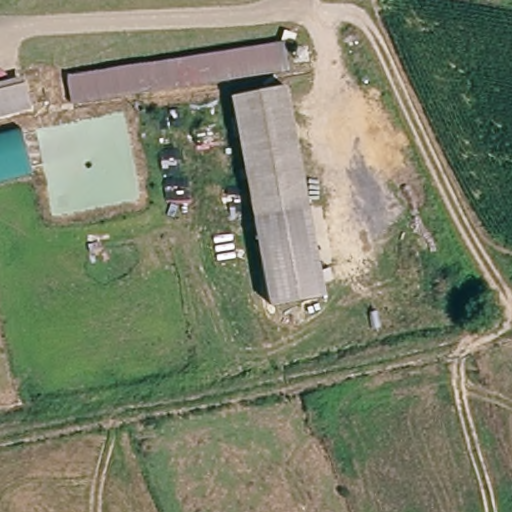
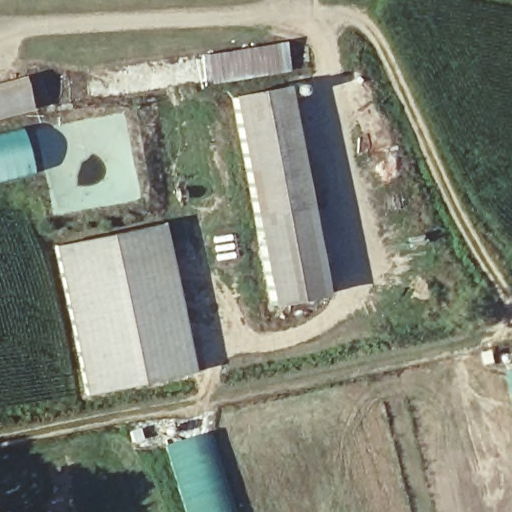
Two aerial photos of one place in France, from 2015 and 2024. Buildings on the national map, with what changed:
unchanged [(73,107),(65,76),(289,42),(294,72),(73,107)]
unchanged [(30,115),(0,123),(0,90),(23,85),(30,115)]
unchanged [(234,99),(290,90),(328,296),(272,306),(234,99)]
unchanged [(36,180),(0,188),(0,134),(24,129),(36,180)]
new [(195,373),(86,396),(55,247),(162,224),(195,373)]
new [(512,384),(511,380),(512,379),(512,384)]
new [(188,512),(167,445),(211,432),(237,512),(188,512)]

